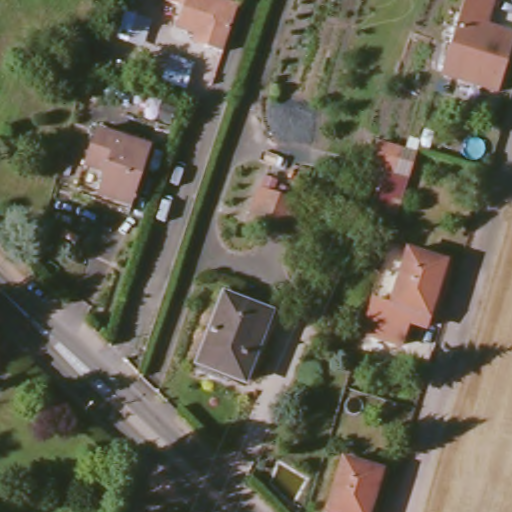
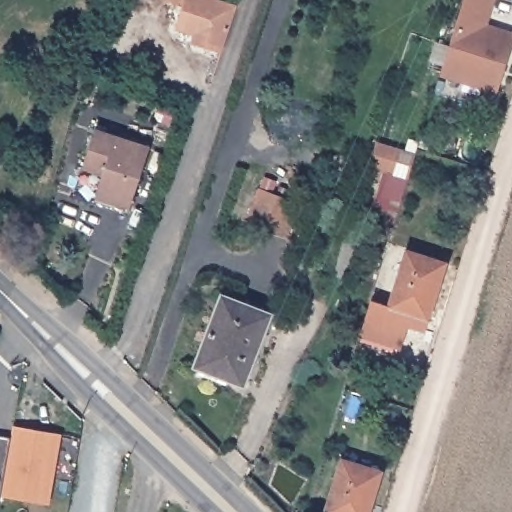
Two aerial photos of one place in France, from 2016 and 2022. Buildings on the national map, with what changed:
unchanged [(178,23),(184,4),(175,0),(224,0),(239,5),(223,51),(207,46),(194,41),(199,31),(178,23)]
unchanged [(512,34),(512,52),(500,93),(442,76),(465,0),(495,0),(487,26),(512,34)]
unchanged [(95,200),(97,194),(79,188),(97,129),(150,146),(131,204),(129,211),(95,200)]
unchanged [(253,225),(263,192),(302,203),(292,237),(253,225)]
unchanged [(392,307),(409,252),(445,262),(427,318),(392,307)]
unchanged [(199,362),(225,297),(271,315),(242,381),(199,362)]
unchanged [(427,318),(425,328),(405,322),(399,347),(359,334),(369,301),(392,307),(427,318)]
new [(14,425),(63,433),(50,505),(0,494),(0,498),(0,438),(10,440),(14,425)]
unchanged [(342,461),(380,472),(368,512),(327,512),(342,461)]

